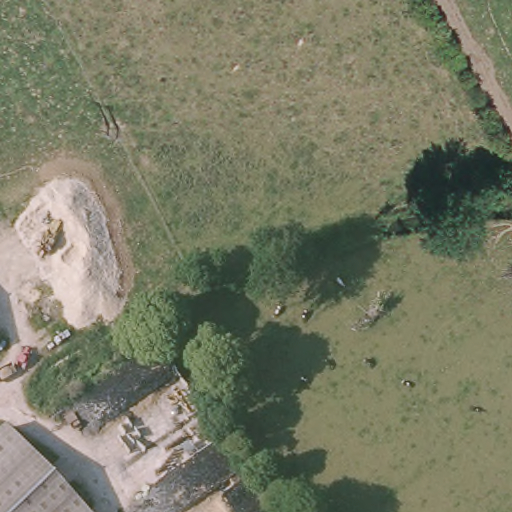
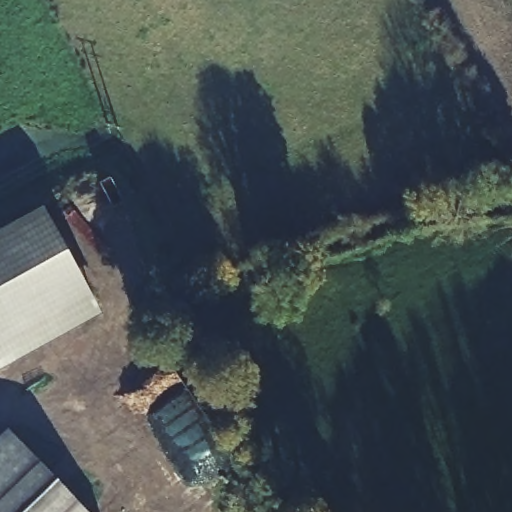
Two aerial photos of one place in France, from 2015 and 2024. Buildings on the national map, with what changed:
new [(100,313),(0,369),(0,230),(42,207),(100,313)]
unchanged [(84,512),(0,512),(0,446),(12,435),(84,512)]

